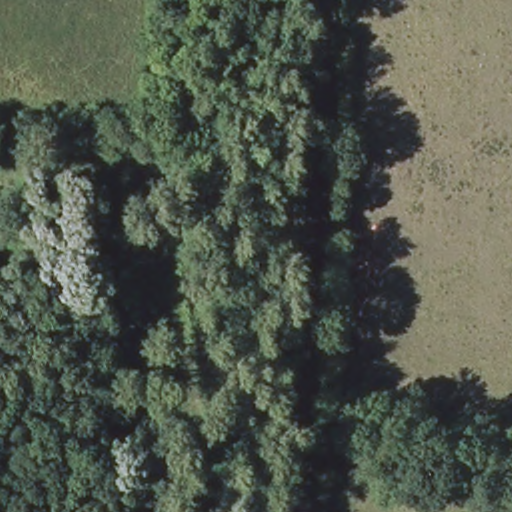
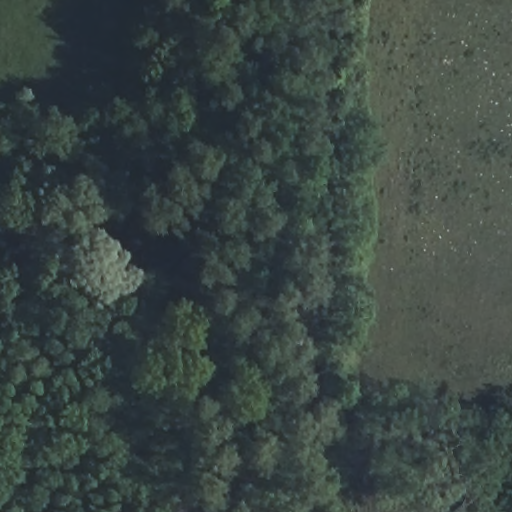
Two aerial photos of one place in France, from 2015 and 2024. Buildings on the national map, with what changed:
[]

